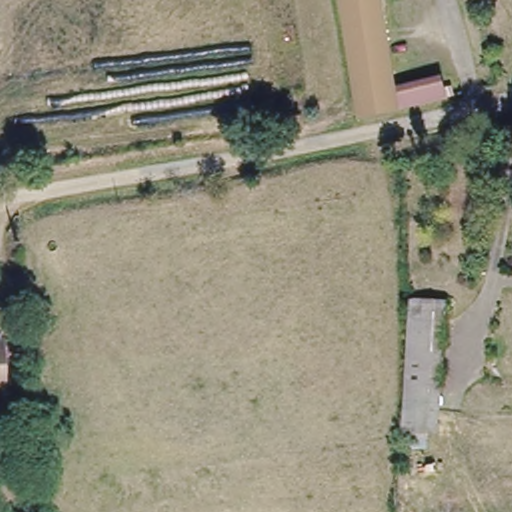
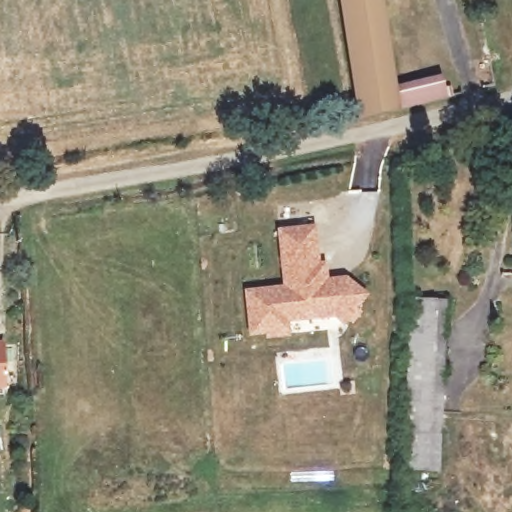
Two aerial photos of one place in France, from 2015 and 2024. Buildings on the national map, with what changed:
unchanged [(348,0),(386,0),(401,82),(447,69),(452,85),(369,111),(348,0)]
new [(288,312),(290,329),(271,331),(271,327),(255,329),(250,288),(289,284),(287,266),(286,266),(282,226),(317,223),(321,261),(326,260),(328,277),(349,275),(367,290),(346,316),(338,310),(331,311),(289,316),(288,312)]
unchanged [(403,428),(403,403),(405,294),(440,294),(440,404),(439,429),(403,428)]

